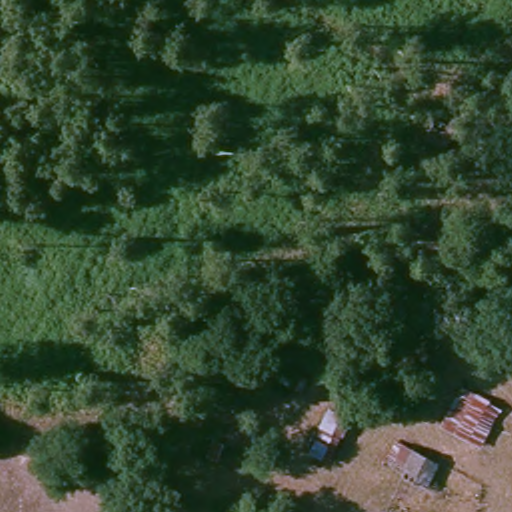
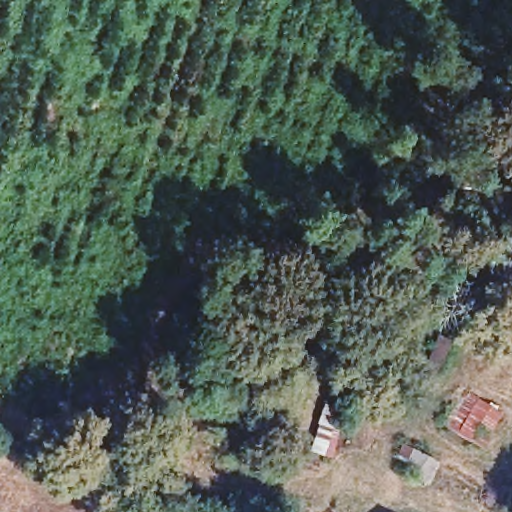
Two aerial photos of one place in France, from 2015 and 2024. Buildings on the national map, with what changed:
unchanged [(457,388),(505,409),(484,447),(443,428),(457,388)]
unchanged [(354,418),(335,462),(310,453),(330,406),(354,418)]
unchanged [(381,467),(392,440),(436,456),(425,484),(381,467)]

